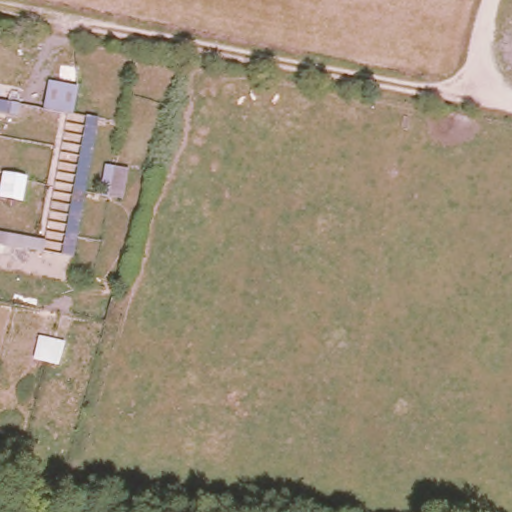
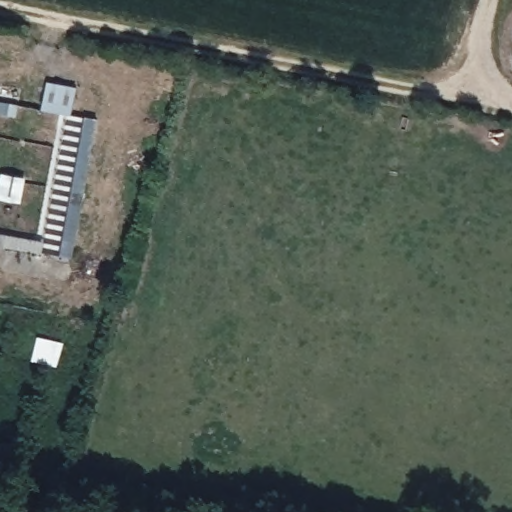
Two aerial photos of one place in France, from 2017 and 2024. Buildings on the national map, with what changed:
unchanged [(37,110),(43,81),(74,85),(68,115),(37,110)]
unchanged [(57,256),(81,117),(95,118),(71,256),(57,256)]

